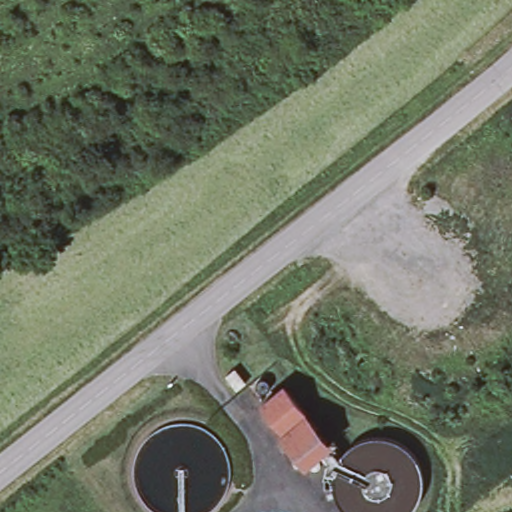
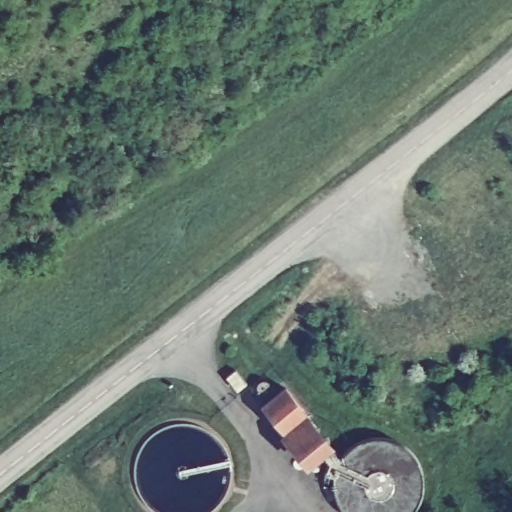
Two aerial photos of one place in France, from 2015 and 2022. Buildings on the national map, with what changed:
unchanged [(307,469),(280,437),(283,435),(260,406),(284,385),(307,415),(333,446),(307,469)]

